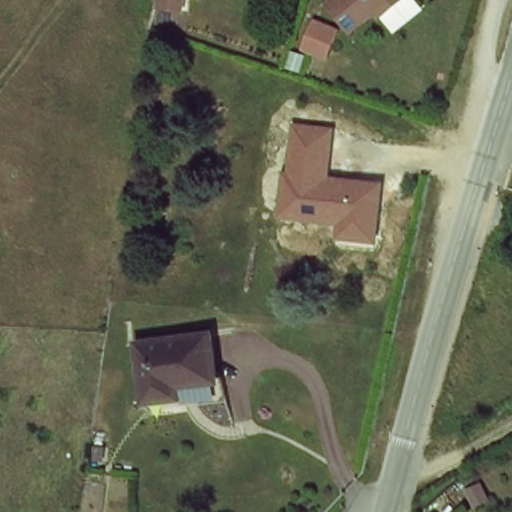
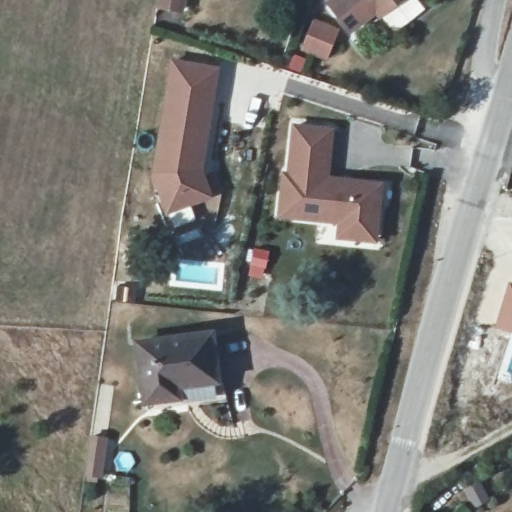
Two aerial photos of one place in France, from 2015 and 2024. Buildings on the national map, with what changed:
unchanged [(154,16),(157,0),(195,0),(191,23),(154,16)]
unchanged [(374,14),(347,33),(327,4),(333,0),(411,0),(379,21),(374,14)]
new [(311,18),(347,31),(336,59),(300,46),(311,18)]
new [(166,199),(156,172),(173,59),(210,65),(217,66),(212,97),(202,160),(201,167),(211,193),(189,201),(170,208),(166,199)]
unchanged [(337,239),(339,224),(278,217),(282,173),(288,174),(294,123),(336,127),(331,175),(384,181),(379,243),(337,239)]
new [(508,280),(512,281),(512,333),(495,327),(508,280)]
unchanged [(209,330),(211,371),(169,375),(170,395),(141,398),(138,336),(209,330)]

